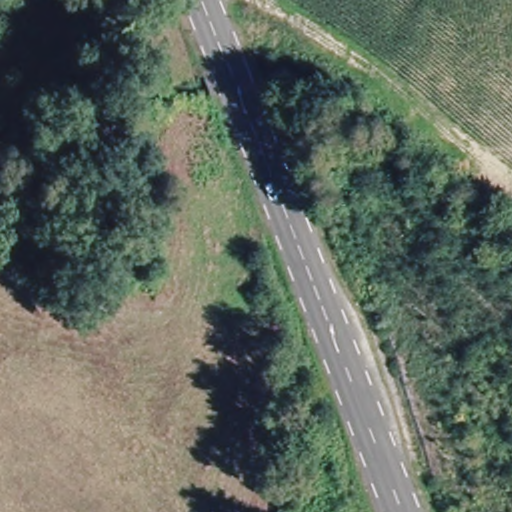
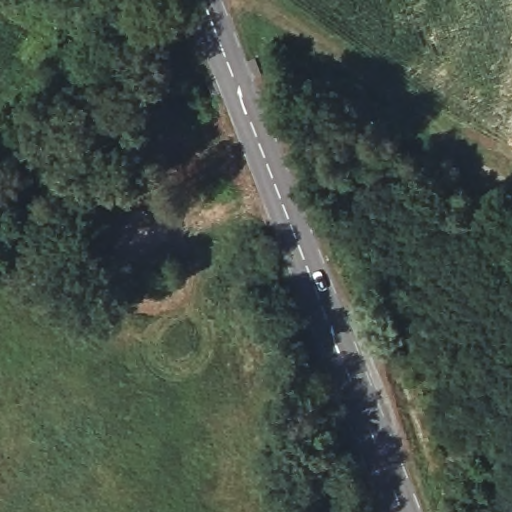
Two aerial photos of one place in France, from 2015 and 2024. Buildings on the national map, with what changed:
unchanged [(166,228),(131,236),(128,221),(163,214),(166,228)]

